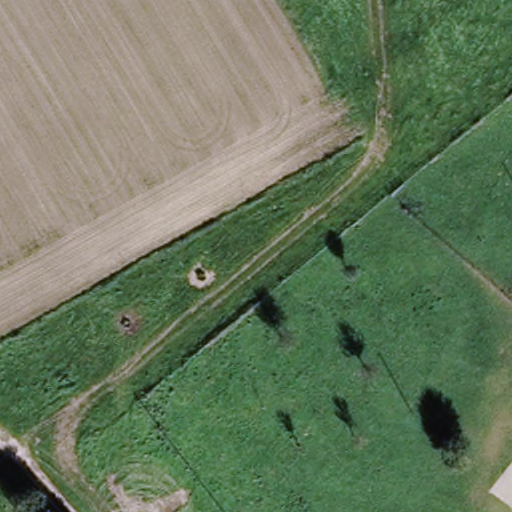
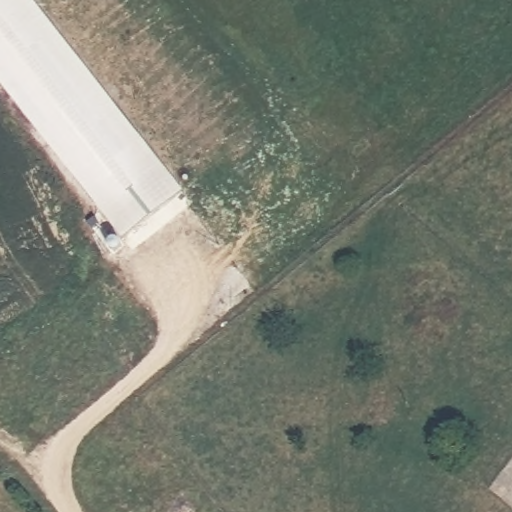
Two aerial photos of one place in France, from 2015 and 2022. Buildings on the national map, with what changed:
new [(122,238),(0,83),(0,0),(32,0),(183,188),(122,238)]

